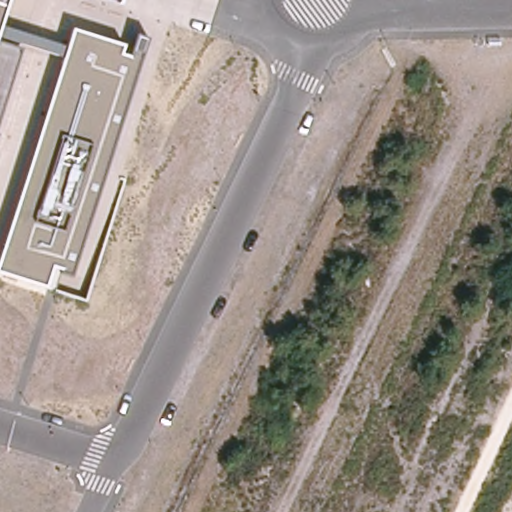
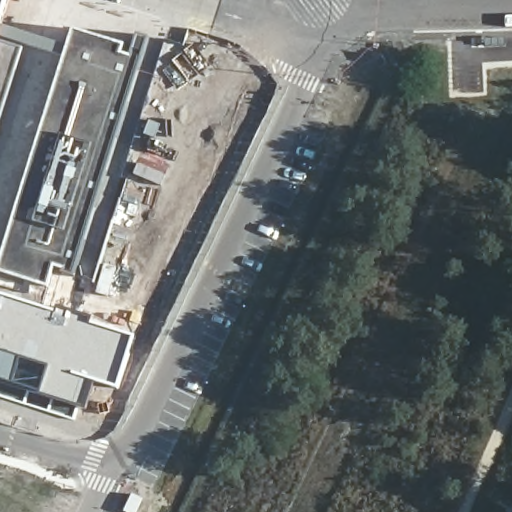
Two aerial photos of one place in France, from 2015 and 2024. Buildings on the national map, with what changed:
unchanged [(68,50),(73,30),(123,45),(120,55),(130,59),(139,35),(148,37),(76,274),(54,268),(47,286),(0,272),(0,265),(65,60),(21,47),(0,115),(0,0),(9,0),(0,25),(68,50)]
new [(52,310),(54,306),(93,316),(91,322),(136,336),(118,390),(94,382),(86,407),(41,395),(0,381),(0,295),(52,310)]

